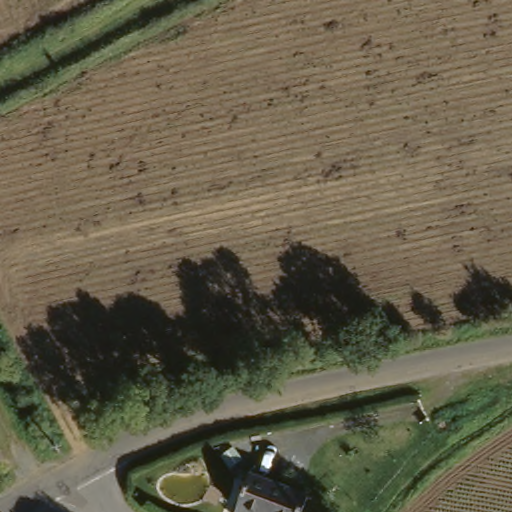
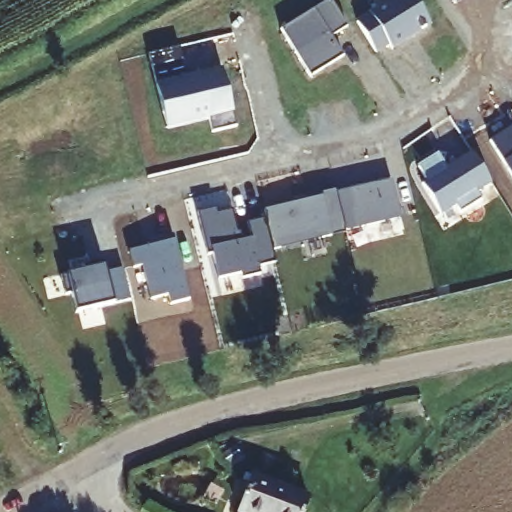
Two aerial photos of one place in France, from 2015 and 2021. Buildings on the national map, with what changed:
new [(332,0),(347,25),(331,35),(343,54),(309,76),(280,27),(324,0),(332,0)]
new [(414,0),(431,26),(391,49),(388,44),(376,52),(356,21),(390,0),(414,0)]
new [(178,46),(184,78),(220,70),(234,127),(209,132),(205,117),(163,128),(146,54),(178,46)]
new [(512,119),(512,175),(486,133),(511,117),(512,119)]
new [(439,156),(449,172),(459,166),(459,163),(474,154),(493,185),(479,194),(484,202),(461,216),(456,207),(441,217),(423,187),(428,183),(419,169),(439,156)]
new [(291,201),(334,190),(336,196),(392,182),(400,218),(344,232),(344,233),(329,237),(271,250),(264,219),(261,211),(292,204),(291,201)]
new [(214,209),(216,214),(229,211),(236,233),(238,232),(240,241),(249,240),(244,223),(264,219),(271,250),(274,265),(258,269),(260,277),(241,282),(239,277),(217,282),(211,257),(206,258),(195,213),(214,209)]
new [(159,244),(158,238),(177,234),(191,300),(172,304),(170,295),(151,299),(144,266),(134,267),(131,251),(159,244)]
new [(86,268),(84,263),(105,258),(108,271),(124,267),(133,300),(76,311),(72,292),(66,293),(62,274),(86,268)]
unchanged [(254,470),(310,483),(303,512),(245,512),(254,470)]

